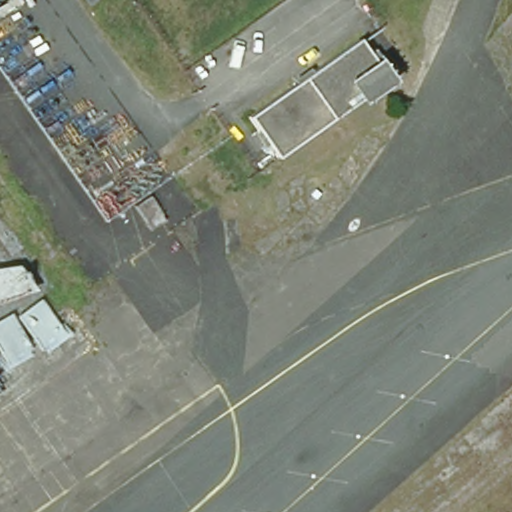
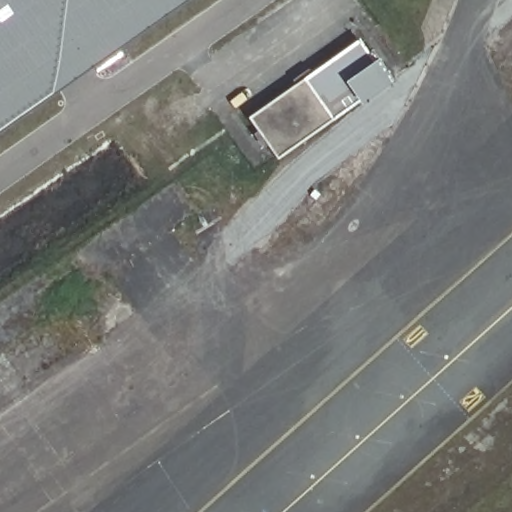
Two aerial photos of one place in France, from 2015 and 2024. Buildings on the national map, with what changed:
new [(0,0),(178,0),(0,126),(0,0)]
unchanged [(275,165),(247,121),(361,39),(393,87),(275,165)]

